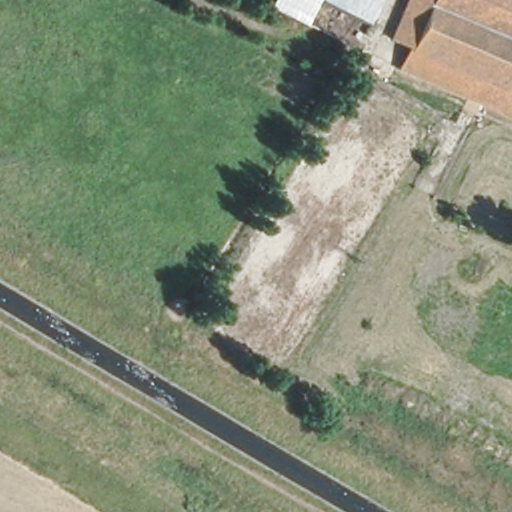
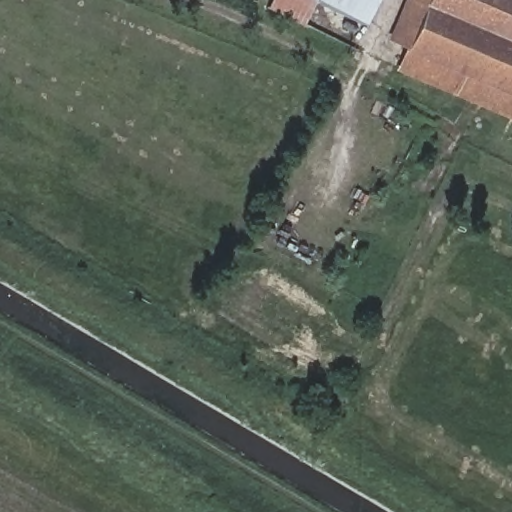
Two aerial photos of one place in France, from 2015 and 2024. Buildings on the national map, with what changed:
unchanged [(304,24),(268,5),(271,0),(316,0),(304,24)]
unchanged [(367,24),(321,0),(378,0),(367,24)]
unchanged [(512,123),(398,74),(407,51),(388,43),(407,0),(512,0),(512,123)]

